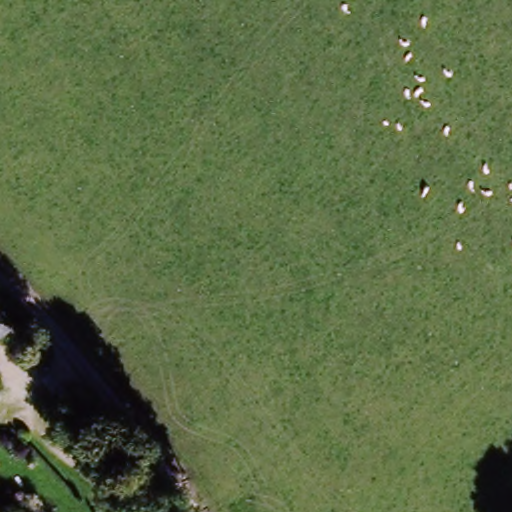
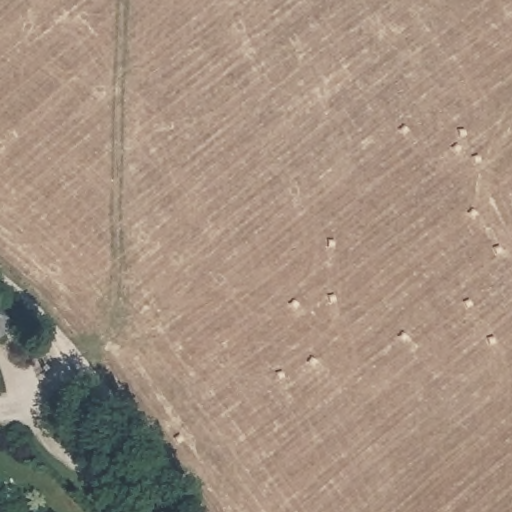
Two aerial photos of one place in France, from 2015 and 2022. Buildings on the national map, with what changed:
unchanged [(16,328),(0,341),(0,308),(16,328)]

